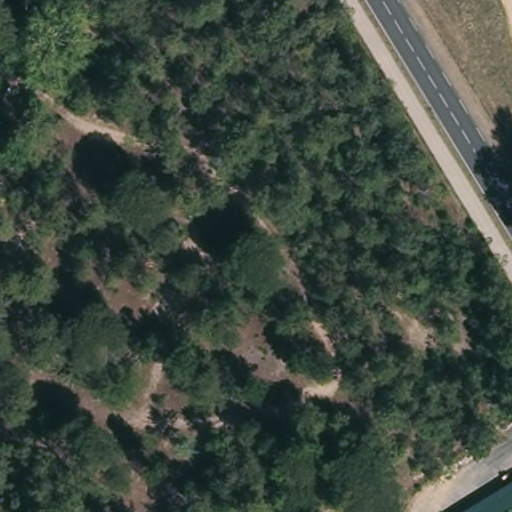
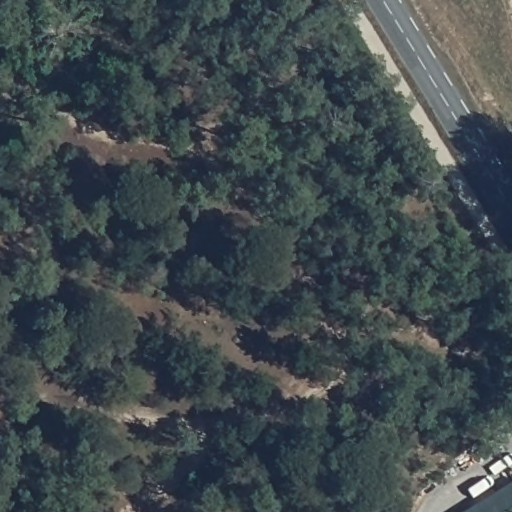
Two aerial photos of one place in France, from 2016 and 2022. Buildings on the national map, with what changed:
unchanged [(469,512),(512,485),(512,512),(469,512)]

